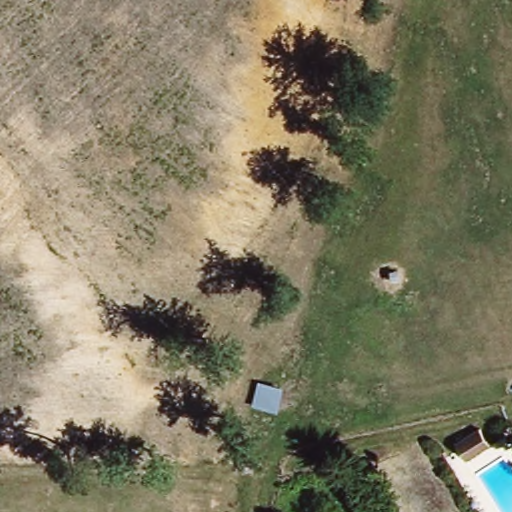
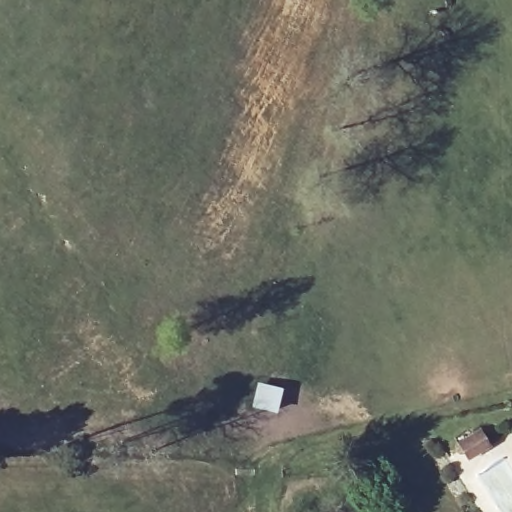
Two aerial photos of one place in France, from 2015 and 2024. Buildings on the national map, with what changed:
unchanged [(468,443),(479,458),(460,471),(448,455),(468,443)]

